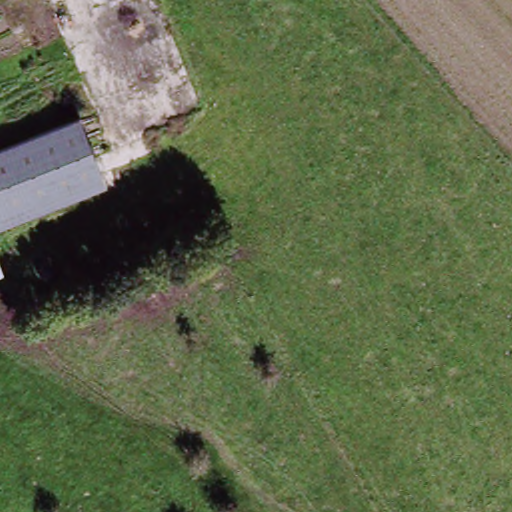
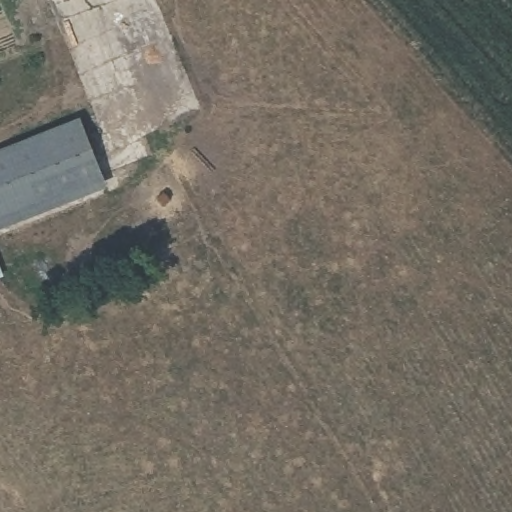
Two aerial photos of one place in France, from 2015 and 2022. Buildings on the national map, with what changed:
unchanged [(85,125),(108,187),(0,224),(0,155),(85,125)]
unchanged [(4,277),(0,279),(0,264),(4,277)]

